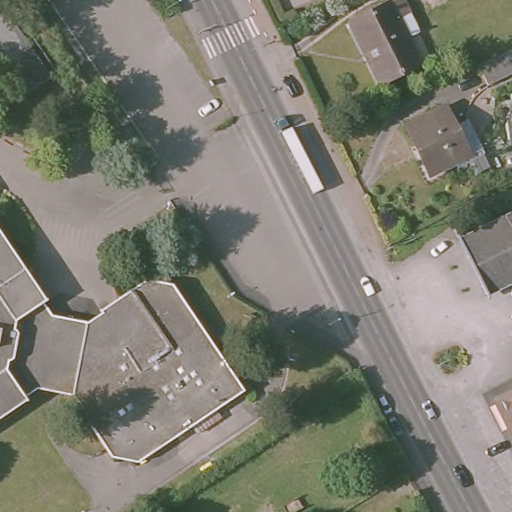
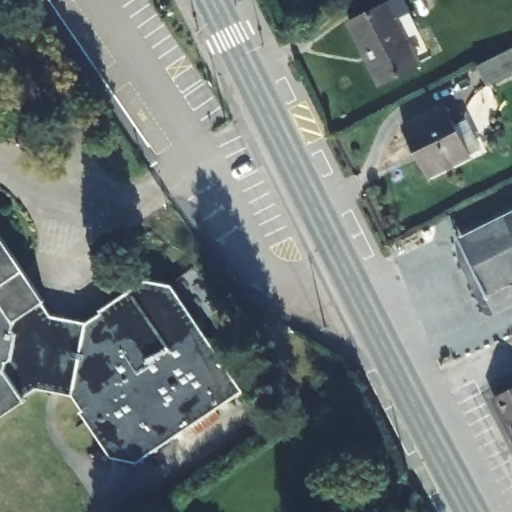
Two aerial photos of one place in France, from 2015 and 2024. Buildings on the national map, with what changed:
unchanged [(384,91),(354,31),(405,5),(412,22),(400,28),(422,72),(384,91)]
unchanged [(20,98),(0,69),(0,25),(40,84),(20,98)]
unchanged [(478,65),(512,48),(512,73),(488,85),(478,65)]
unchanged [(419,162),(405,134),(446,113),(455,133),(467,128),(481,158),(434,181),(429,184),(419,162)]
unchanged [(462,244),(512,219),(512,291),(490,303),(462,244)]
unchanged [(52,305),(50,307),(58,319),(62,319),(64,306),(87,309),(85,325),(101,316),(100,312),(147,281),(174,284),(246,394),(222,409),(227,418),(197,437),(192,429),(137,466),(112,462),(79,414),(82,411),(75,402),(41,396),(34,401),(36,404),(0,428),(0,229),(52,305)]
unchanged [(512,399),(512,427),(502,404),(512,399)]

